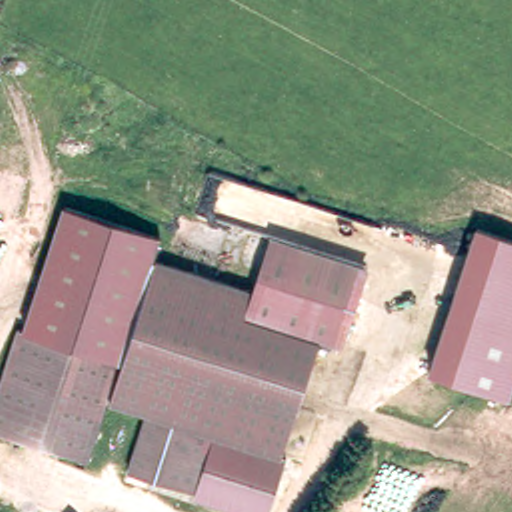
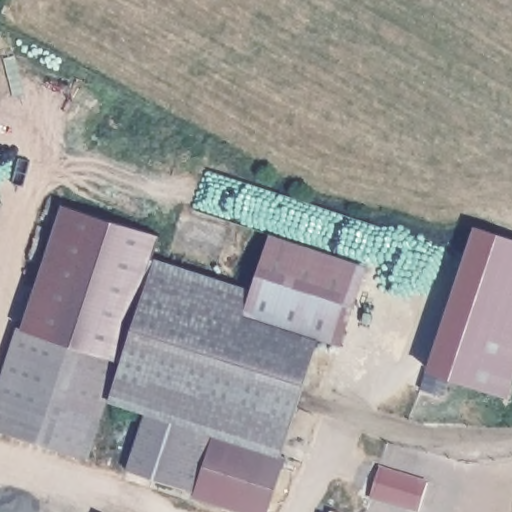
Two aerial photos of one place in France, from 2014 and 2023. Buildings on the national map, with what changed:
unchanged [(281,460),(264,512),(231,512),(189,498),(191,494),(124,472),(143,413),(106,400),(103,399),(83,458),(0,431),(0,379),(17,328),(22,329),(63,204),(158,236),(151,260),(250,293),(269,236),(356,265),(366,269),(339,348),(329,344),(317,340),(278,458),(281,460)]
unchanged [(512,388),(509,397),(429,371),(476,225),(512,238),(512,388)]
new [(419,512),(415,512),(369,498),(380,465),(429,480),(419,512)]

